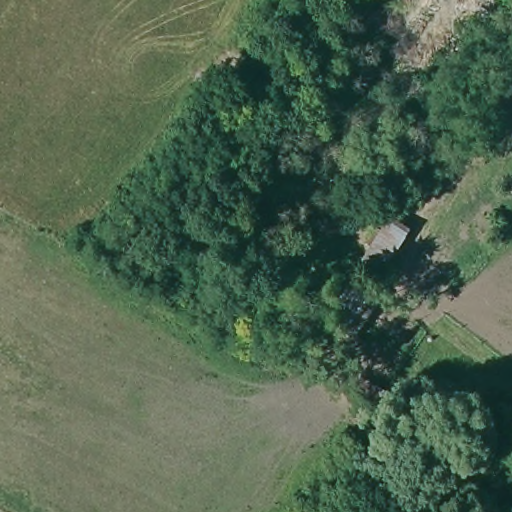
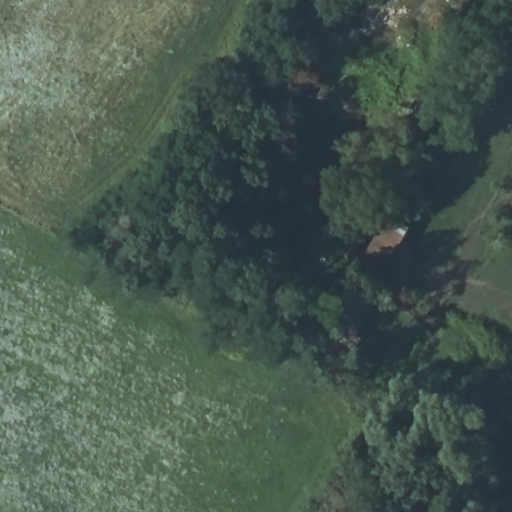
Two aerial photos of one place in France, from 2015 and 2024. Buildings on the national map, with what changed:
[]

